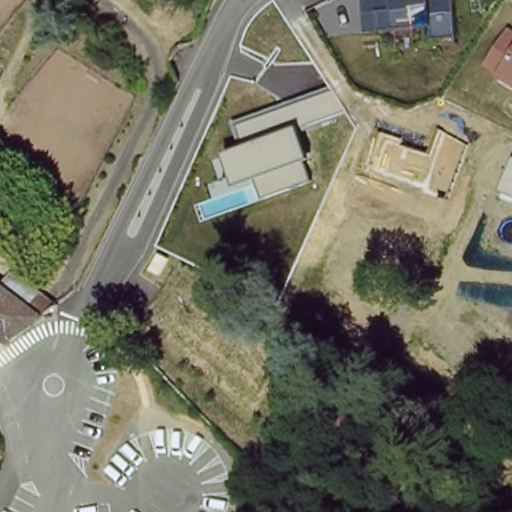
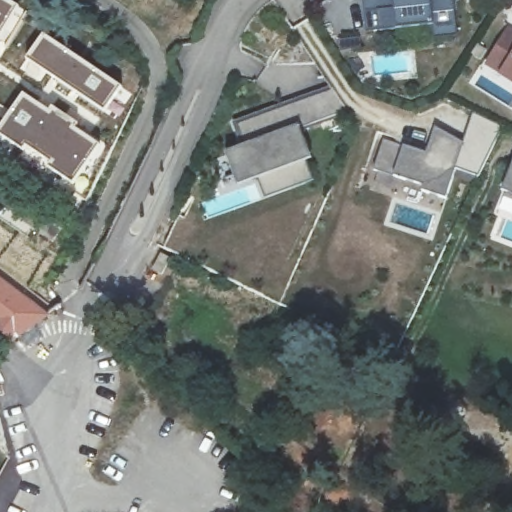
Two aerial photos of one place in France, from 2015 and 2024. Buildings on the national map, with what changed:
new [(23,9),(16,17),(0,48),(0,0),(9,0),(23,9)]
unchanged [(435,39),(432,25),(400,29),(369,33),(364,0),(454,0),(458,36),(435,39)]
unchanged [(511,26),(512,26),(512,82),(487,66),(511,26)]
new [(44,33),(123,88),(107,114),(27,62),(44,33)]
unchanged [(266,197),(261,179),(239,187),(228,154),(244,147),(236,124),(331,87),(347,112),(303,130),(313,159),(307,161),(315,181),(266,197)]
new [(24,93),(51,111),(53,107),(80,126),(77,130),(101,146),(74,187),(0,137),(0,126),(24,93)]
unchanged [(438,130),(466,148),(445,202),(421,193),(423,188),(374,169),(366,166),(380,130),(404,140),(402,145),(428,155),(438,130)]
unchanged [(512,170),(512,201),(503,197),(512,170)]
unchanged [(34,325),(15,340),(0,327),(0,282),(36,310),(41,305),(37,301),(44,292),(60,306),(34,325)]

